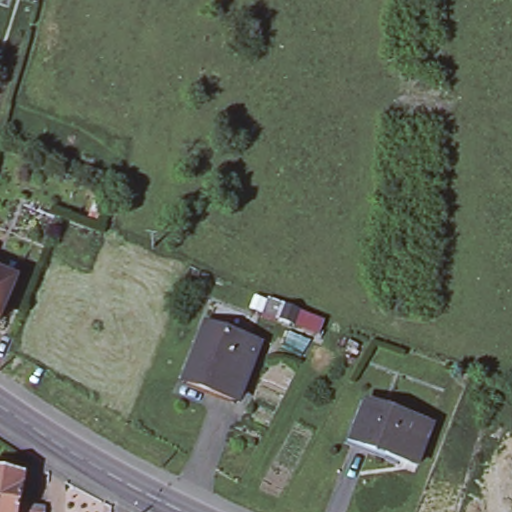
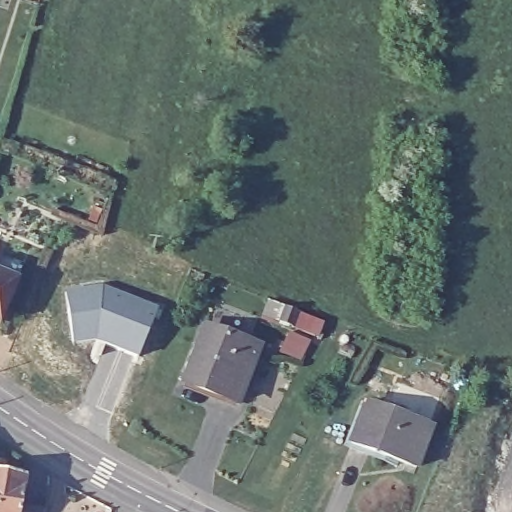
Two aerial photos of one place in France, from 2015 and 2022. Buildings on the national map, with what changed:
unchanged [(0,312),(0,280),(12,285),(0,312)]
new [(64,291),(104,285),(158,307),(138,357),(98,341),(73,346),(64,291)]
new [(269,298),(302,311),(300,314),(324,323),(319,339),(280,325),(279,329),(260,322),(269,298)]
unchanged [(255,346),(234,401),(182,381),(203,325),(255,346)]
unchanged [(430,427),(414,467),(350,441),(367,402),(430,427)]
unchanged [(24,477),(18,507),(29,510),(46,511),(46,512),(0,512),(0,472),(24,477)]

